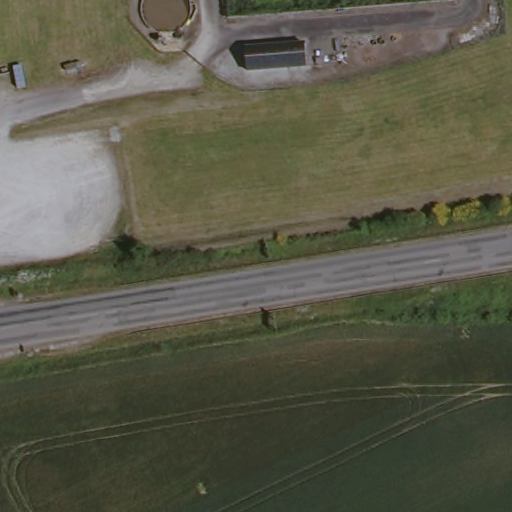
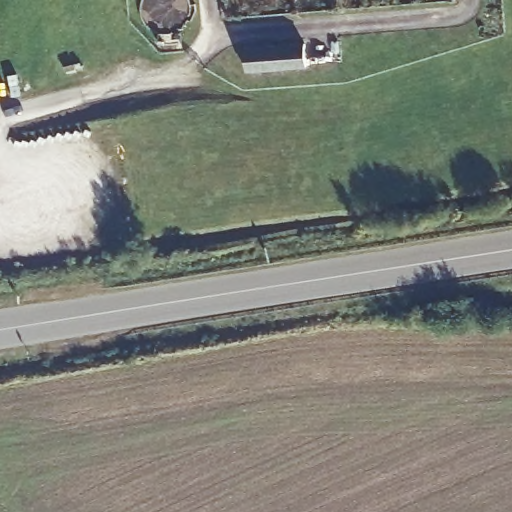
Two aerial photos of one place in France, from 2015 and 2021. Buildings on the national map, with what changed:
unchanged [(300,68),(239,71),(238,49),(299,46),(300,68)]
unchanged [(70,58),(55,62),(53,56),(68,53),(70,58)]

